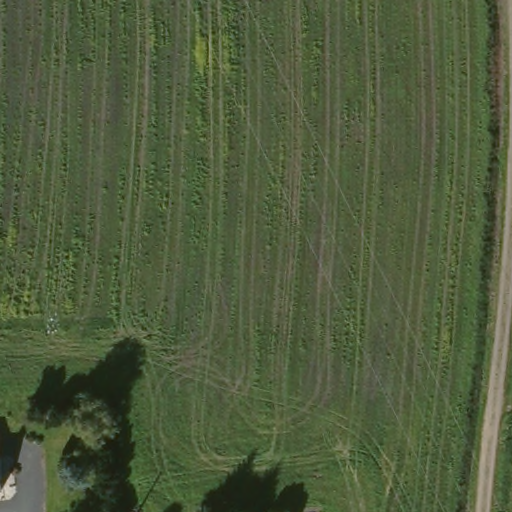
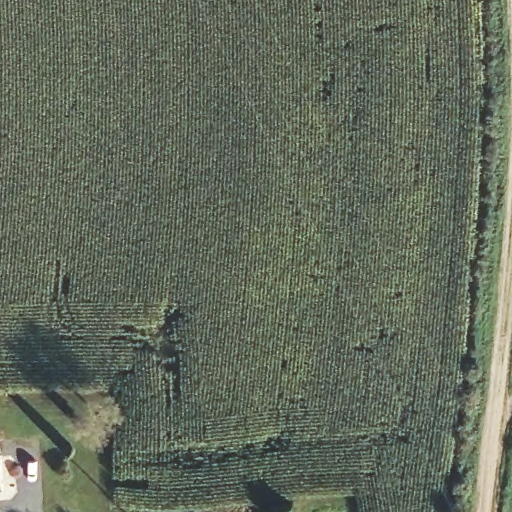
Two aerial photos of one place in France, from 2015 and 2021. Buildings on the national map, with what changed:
unchanged [(3,425),(6,453),(0,454),(0,426),(3,425)]
unchanged [(6,453),(14,512),(0,512),(0,454),(6,453)]

